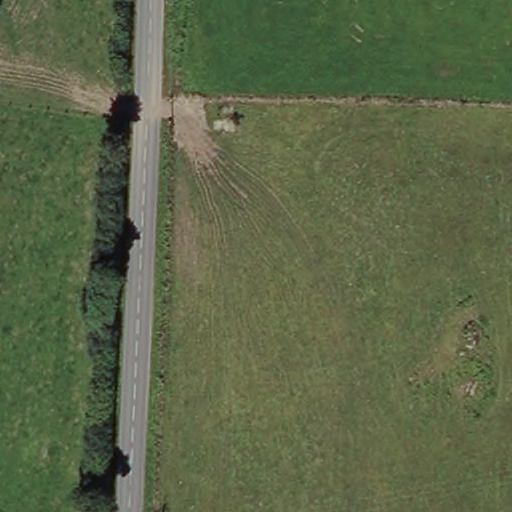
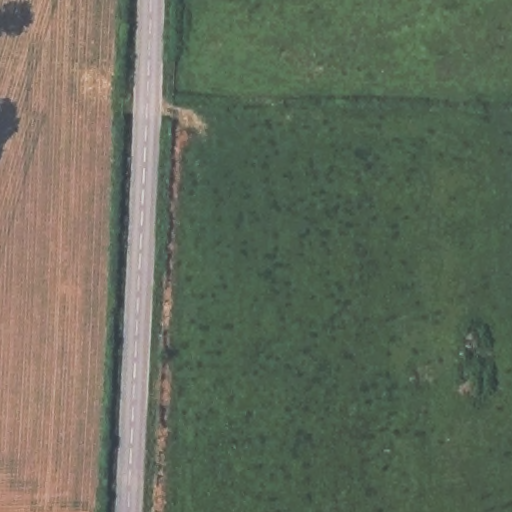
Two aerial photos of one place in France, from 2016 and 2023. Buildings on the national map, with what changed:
[]

